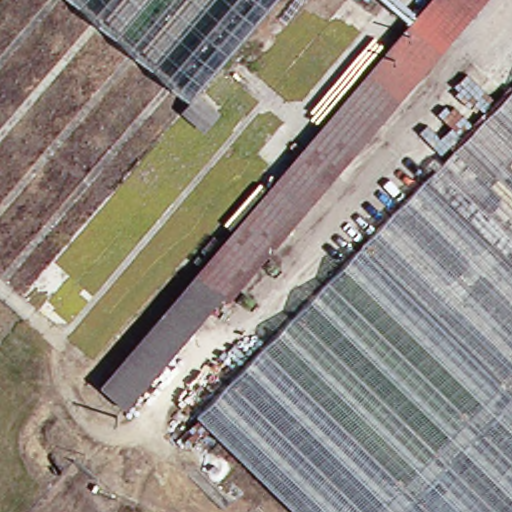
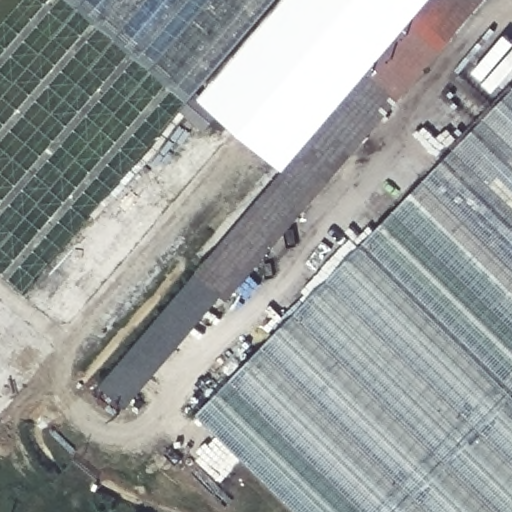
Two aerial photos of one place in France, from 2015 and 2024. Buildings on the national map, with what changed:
unchanged [(82,0),(278,0),(194,96),(82,0)]
new [(278,0),(436,0),(297,160),(290,169),(198,92),(278,0)]
unchanged [(297,160),(436,0),(488,0),(329,183),(297,160)]
unchanged [(462,145),(450,132),(466,116),(465,99),(480,85),(499,104),(512,90),(512,512),(307,512),(205,411),(462,145)]
unchanged [(329,183),(160,377),(132,350),(156,321),(297,160),(329,183)]

